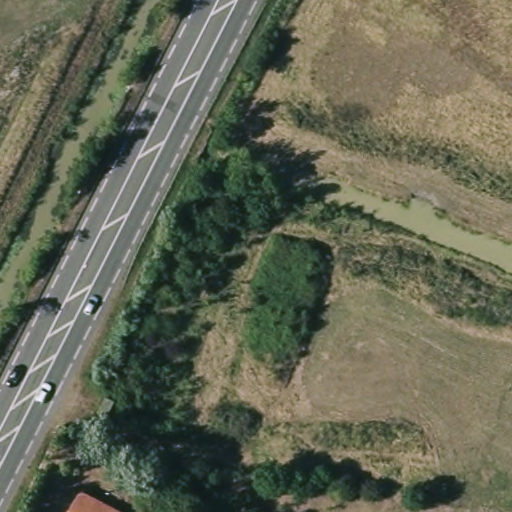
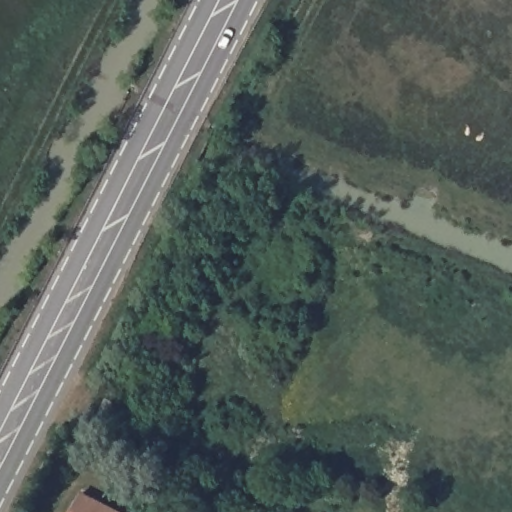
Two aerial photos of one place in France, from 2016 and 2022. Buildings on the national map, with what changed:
unchanged [(72,512),(81,495),(117,512),(72,512)]

